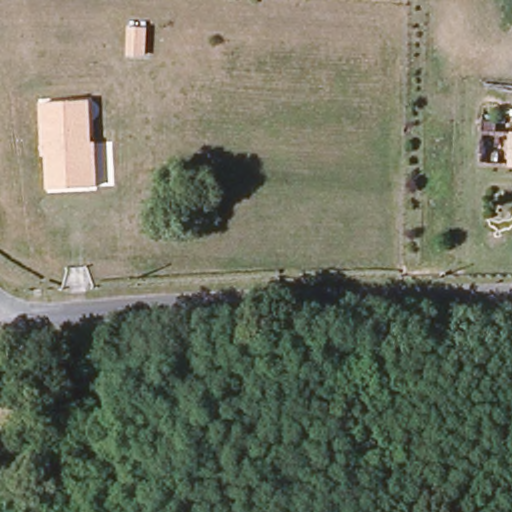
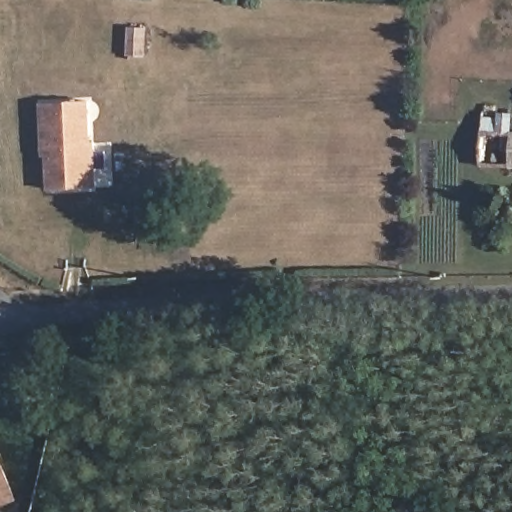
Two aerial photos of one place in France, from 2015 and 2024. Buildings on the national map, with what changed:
unchanged [(125,29),(125,28),(143,29),(142,30),(140,55),(124,53),(125,29)]
unchanged [(39,139),(39,100),(84,100),(84,142),(90,142),(90,160),(91,187),(45,187),(44,157),(44,152),(39,152),(39,139)]
unchanged [(512,168),(483,167),(483,133),(512,134),(512,159),(512,168)]
new [(0,457),(17,498),(0,506),(0,457)]

